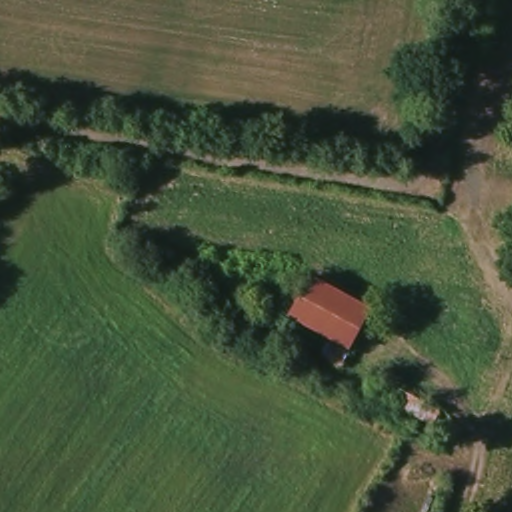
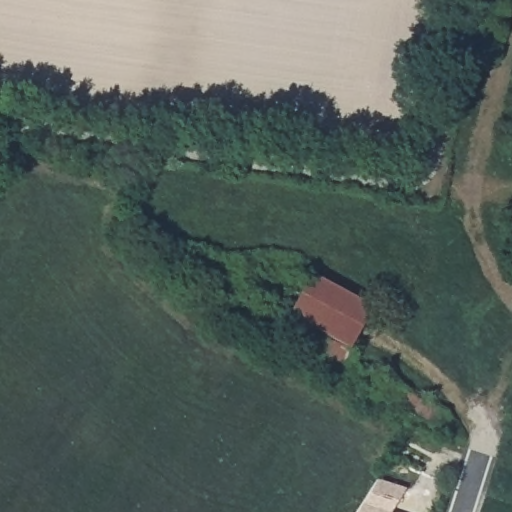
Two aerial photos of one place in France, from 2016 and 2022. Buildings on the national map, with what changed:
unchanged [(365,307),(343,348),(284,315),(306,275),(365,307)]
unchanged [(377,399),(385,380),(440,410),(433,428),(377,399)]
new [(393,512),(357,512),(377,479),(406,489),(393,512)]

